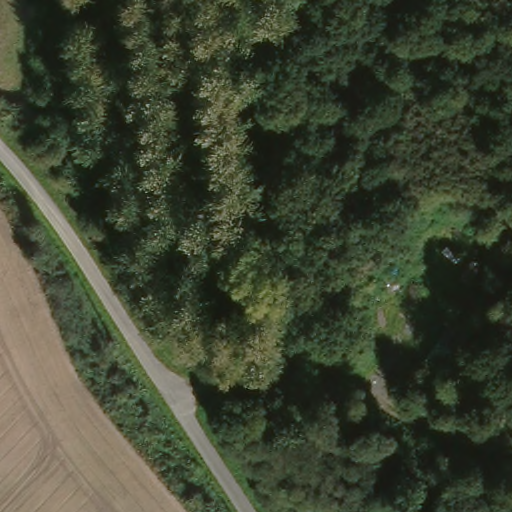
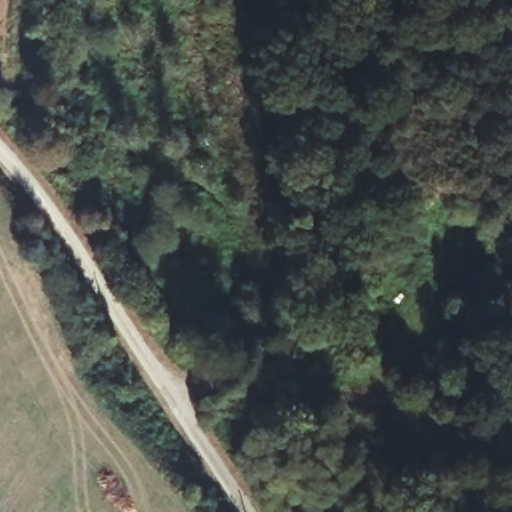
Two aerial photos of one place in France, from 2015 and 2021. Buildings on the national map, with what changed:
unchanged [(475,312),(445,363),(427,353),(458,299),(475,312)]

